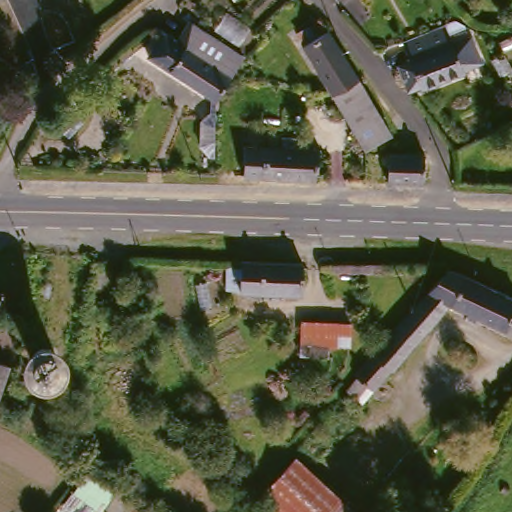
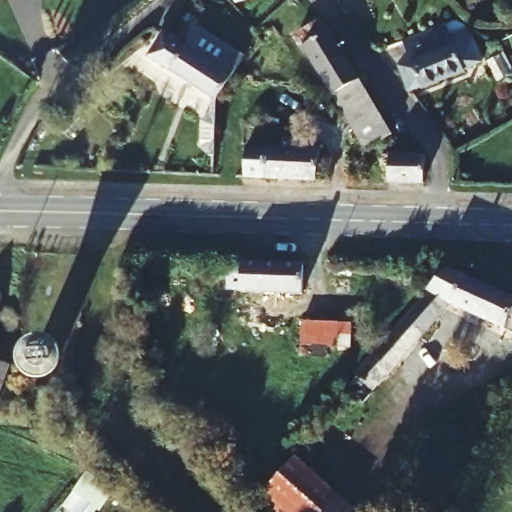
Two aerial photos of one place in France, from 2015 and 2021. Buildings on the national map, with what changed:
unchanged [(316,0),(340,0),(323,10),(316,0)]
unchanged [(325,91),(294,48),(315,30),(348,75),(325,91)]
unchanged [(149,74),(162,50),(168,53),(179,31),(238,58),(224,79),(208,104),(149,74)]
unchanged [(402,77),(412,72),(401,53),(401,52),(439,31),(449,50),(462,73),(423,92),(410,98),(402,77)]
unchanged [(348,75),(387,128),(364,145),(325,91),(348,75)]
unchanged [(219,146),(202,146),(201,110),(219,109),(219,146)]
unchanged [(236,177),(237,160),(262,161),(262,154),(318,156),(318,181),(236,177)]
unchanged [(386,188),(387,162),(407,163),(424,163),(423,189),(386,188)]
unchanged [(444,263),(512,296),(512,320),(508,326),(443,299),(369,406),(354,397),(437,263),(438,262),(444,263)]
unchanged [(279,305),(280,300),(268,299),(268,295),(249,295),(234,294),(234,271),(310,274),(309,301),(290,300),(290,305),(279,305)]
unchanged [(325,362),(304,362),(304,328),(338,328),(347,328),(348,346),(338,347),(325,347),(325,362)]
unchanged [(0,375),(0,372),(1,372),(0,375)]
unchanged [(262,508),(287,471),(353,509),(351,512),(259,512),(262,508)]
unchanged [(101,512),(57,512),(57,511),(79,481),(107,502),(101,512)]

